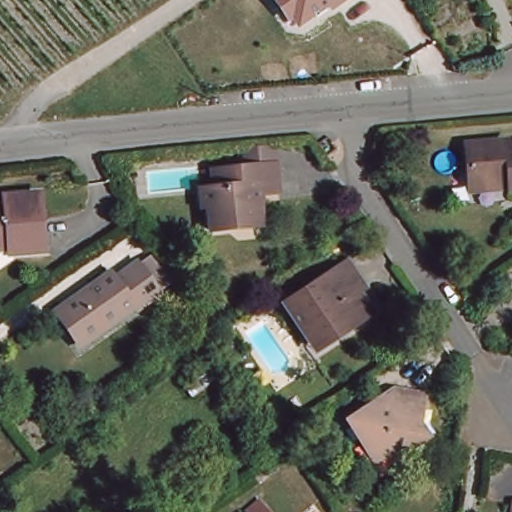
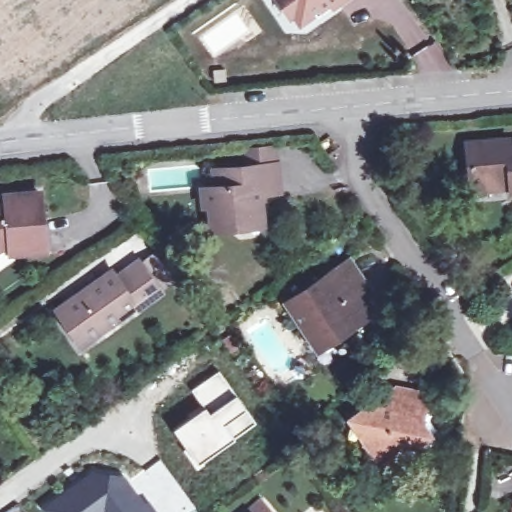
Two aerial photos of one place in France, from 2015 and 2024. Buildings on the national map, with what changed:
unchanged [(330,8),(300,28),(292,19),(287,22),(271,0),(352,0),(334,12),(330,8)]
unchanged [(512,146),(512,188),(475,191),(472,149),(512,146)]
unchanged [(235,232),(211,235),(210,211),(202,212),(200,193),(215,192),(213,174),(250,171),(248,154),(275,151),(277,168),(280,197),(260,198),(261,223),(262,231),(235,232)]
unchanged [(6,201),(40,198),(44,257),(8,260),(8,253),(0,254),(0,214),(7,213),(6,201)]
unchanged [(312,343),(285,303),(348,261),(366,287),(360,291),(373,312),(353,325),(316,350),(312,343)]
unchanged [(56,320),(62,316),(111,282),(117,289),(139,274),(152,265),(172,294),(160,303),(138,319),(136,316),(86,351),(80,355),(56,320)]
demolished [(181,378),(206,361),(217,377),(193,394),(181,378)]
new [(198,465),(172,428),(203,406),(190,389),(219,369),(231,385),(257,421),(198,465)]
unchanged [(378,462),(350,420),(396,389),(425,396),(420,422),(429,435),(414,446),(405,443),(378,462)]
new [(92,470),(125,475),(145,500),(147,498),(158,512),(46,512),(42,507),(92,470)]

